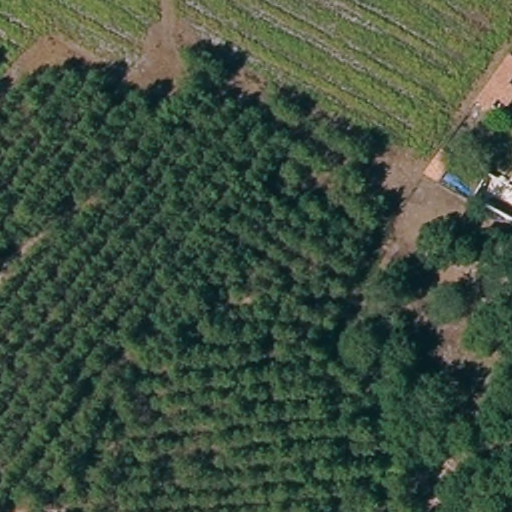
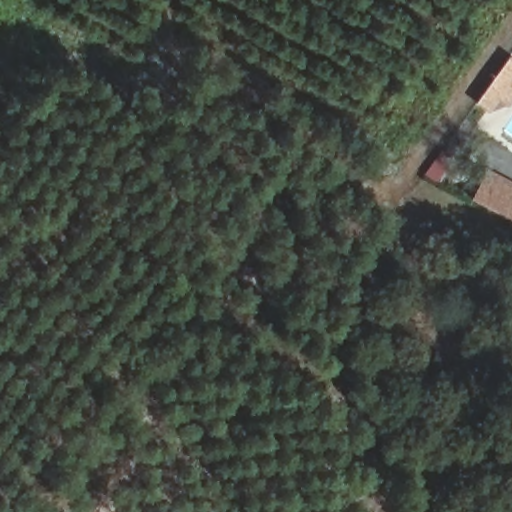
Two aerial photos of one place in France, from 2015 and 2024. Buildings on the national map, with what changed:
unchanged [(476,107),(512,58),(512,88),(491,117),(476,107)]
unchanged [(445,150),(460,161),(437,194),(420,184),(445,150)]
new [(490,166),(512,180),(512,223),(469,195),(490,166)]

